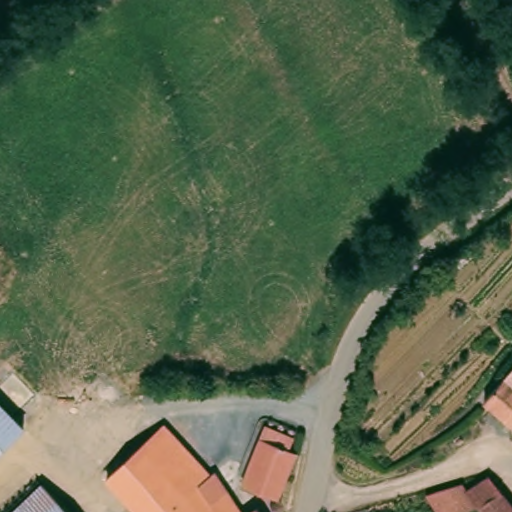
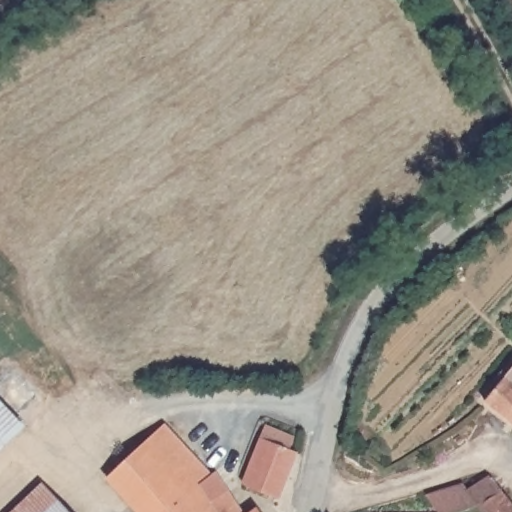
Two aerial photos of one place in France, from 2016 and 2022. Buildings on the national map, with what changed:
unchanged [(512,371),(512,431),(482,402),(512,371)]
unchanged [(28,424),(0,451),(0,395),(28,424)]
unchanged [(287,445),(294,448),(280,490),(243,476),(262,423),(290,434),(287,445)]
unchanged [(134,512),(104,480),(159,429),(207,480),(175,512),(134,512)]
unchanged [(477,505),(458,512),(440,512),(435,500),(464,490),(469,486),(486,473),(510,503),(512,506),(512,512),(483,512),(477,506),(477,505)]
unchanged [(212,475),(223,486),(226,490),(211,502),(221,512),(175,512),(207,480),(212,475)]
unchanged [(2,512),(39,479),(66,506),(71,512),(2,512)]
unchanged [(226,490),(246,512),(221,512),(211,502),(226,490)]
unchanged [(264,512),(254,512),(260,507),(264,512)]

